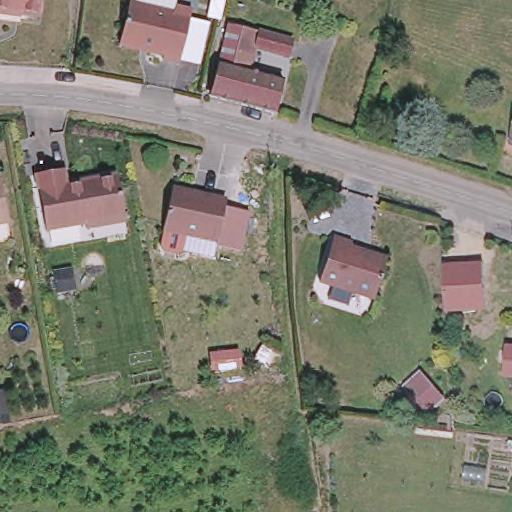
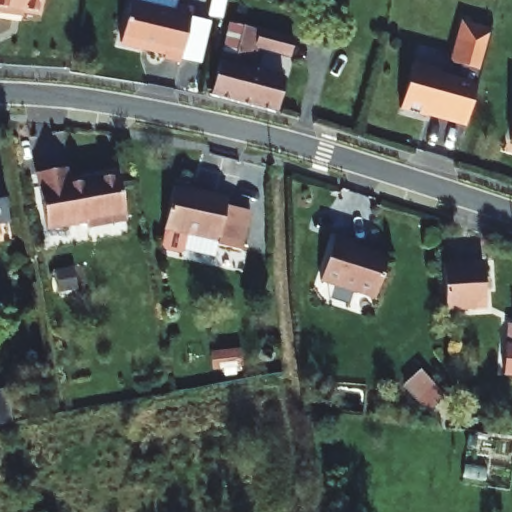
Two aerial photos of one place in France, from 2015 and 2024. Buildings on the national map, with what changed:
unchanged [(44,0),(41,15),(12,10),(10,15),(0,14),(0,0),(44,0)]
unchanged [(161,44),(120,36),(127,0),(146,0),(172,4),(173,1),(191,5),(180,55),(160,51),(161,44)]
unchanged [(222,62),(235,64),(246,25),(294,38),(290,53),(257,45),(252,69),(285,78),(274,112),(213,98),(222,62)]
new [(412,63),(438,70),(437,75),(456,80),(460,66),(452,63),(463,25),(490,33),(465,123),(426,113),(426,116),(400,109),(412,63)]
unchanged [(512,116),(512,141),(505,138),(512,116)]
unchanged [(66,185),(115,176),(124,225),(88,234),(82,226),(46,233),(36,176),(65,171),(66,185)]
unchanged [(0,227),(0,182),(5,181),(14,224),(0,227)]
unchanged [(227,239),(211,235),(207,244),(170,235),(179,188),(200,193),(200,199),(235,207),(227,239)]
unchanged [(322,284),(337,240),(356,245),(356,252),(390,263),(377,302),(322,284)]
unchanged [(480,249),(482,295),(442,298),(440,252),(480,249)]

